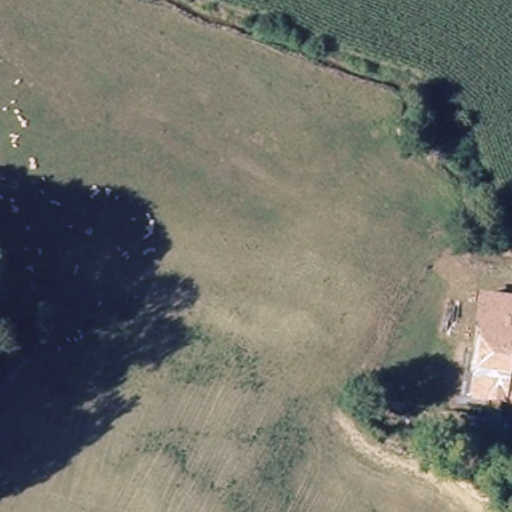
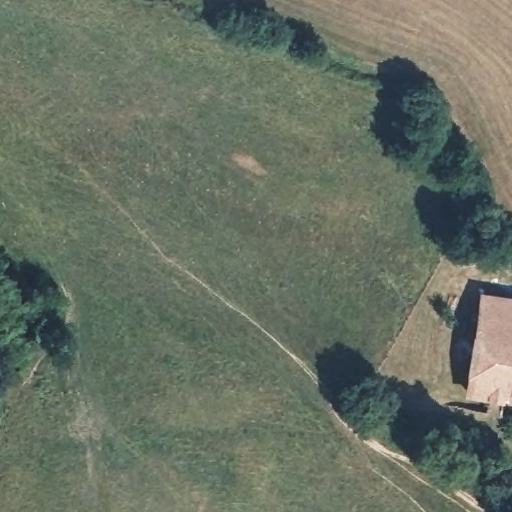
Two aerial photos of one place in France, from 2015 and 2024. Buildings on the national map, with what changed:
unchanged [(508,398),(492,396),(470,393),(484,290),(512,295),(512,399),(508,398)]

